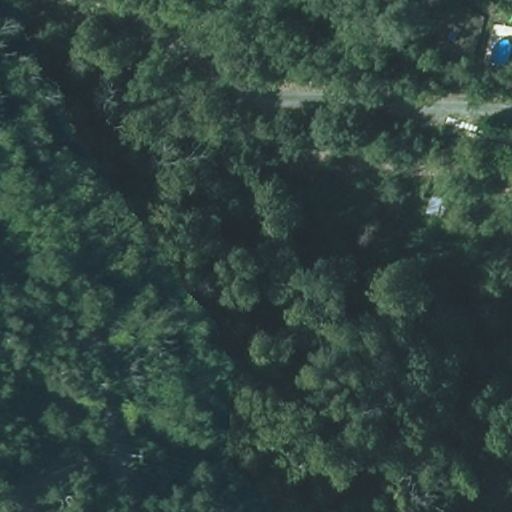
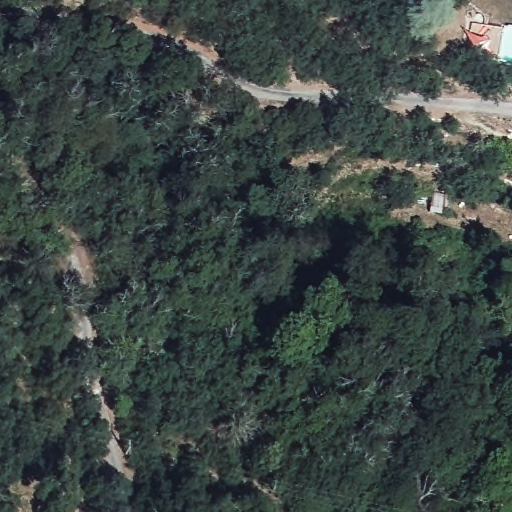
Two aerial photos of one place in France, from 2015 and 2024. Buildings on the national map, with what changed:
unchanged [(433,190),(457,194),(453,219),(428,214),(433,190)]

